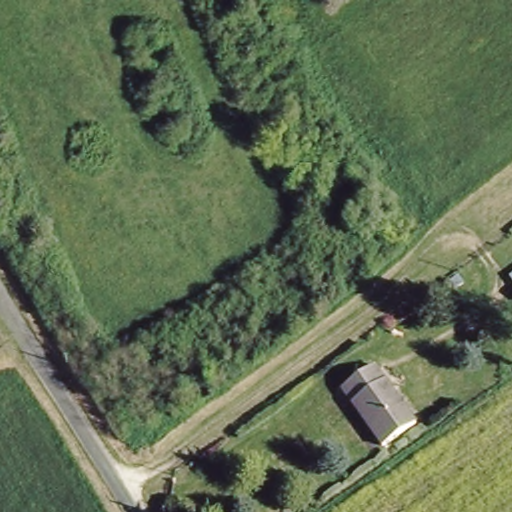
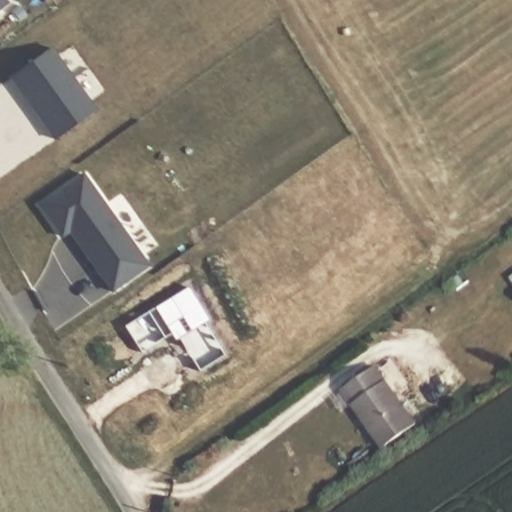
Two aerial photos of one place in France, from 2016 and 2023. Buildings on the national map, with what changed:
new [(10,0),(13,4),(0,12),(0,0),(10,0)]
new [(53,47),(98,109),(58,139),(45,121),(47,120),(32,99),(30,100),(12,76),(53,47)]
new [(113,295),(70,233),(62,240),(41,205),(86,174),(153,267),(113,295)]
unchanged [(512,271),(512,291),(503,276),(512,271)]
unchanged [(377,447),(339,390),(378,365),(418,422),(377,447)]

